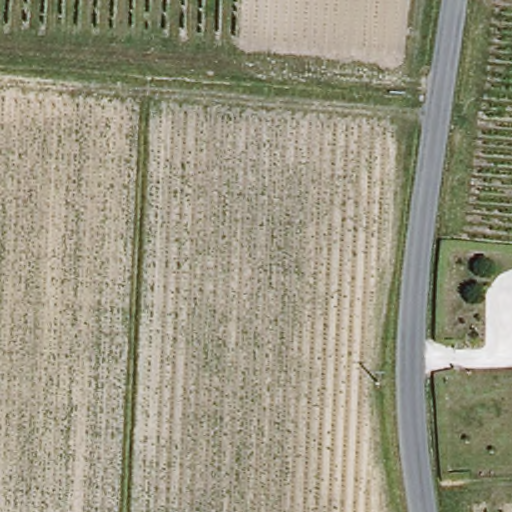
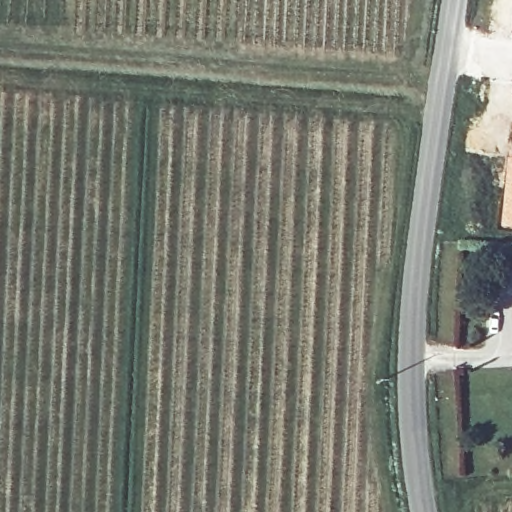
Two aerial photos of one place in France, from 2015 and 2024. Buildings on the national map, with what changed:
new [(506,161),(511,123),(512,123),(512,228),(499,227),(506,161)]

